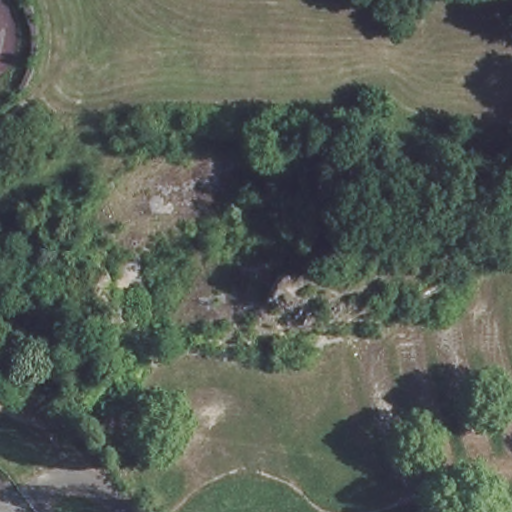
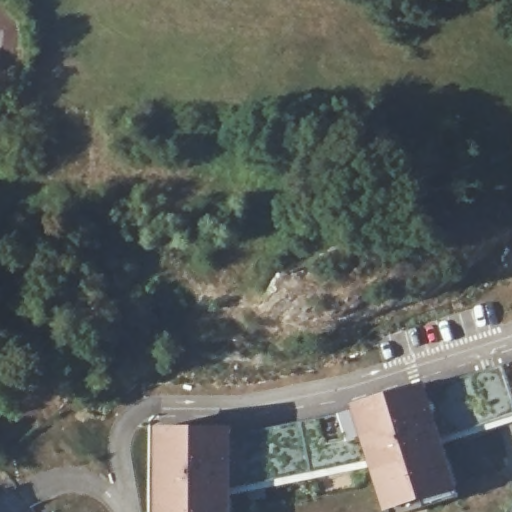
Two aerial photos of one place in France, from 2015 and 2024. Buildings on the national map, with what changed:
new [(503,363),(512,360),(512,392),(503,363)]
new [(230,428),(230,435),(357,410),(355,406),(424,383),(426,388),(481,372),(495,421),(441,437),(456,486),(422,497),(387,507),(375,467),(231,497),(231,512),(160,512),(159,428),(230,428)]

